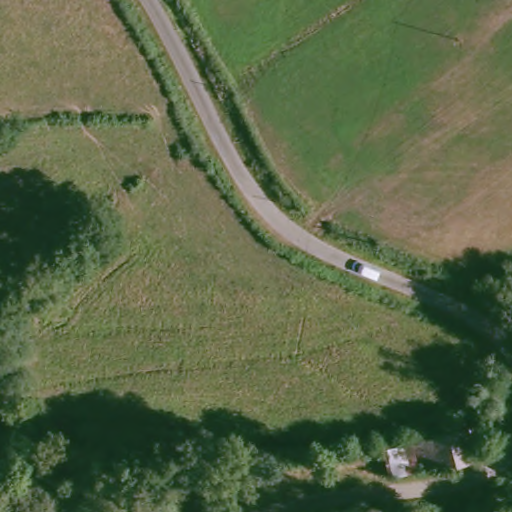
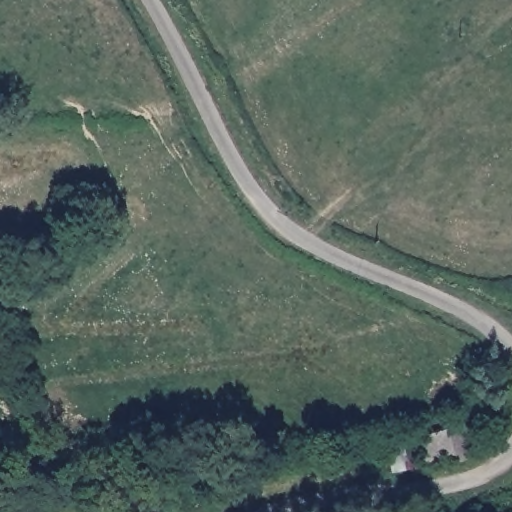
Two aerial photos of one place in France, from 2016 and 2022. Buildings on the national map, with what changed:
unchanged [(474,458),(392,477),(386,441),(473,423),(474,458)]

